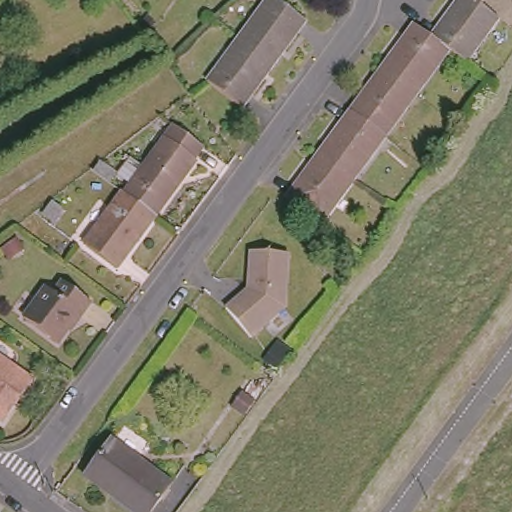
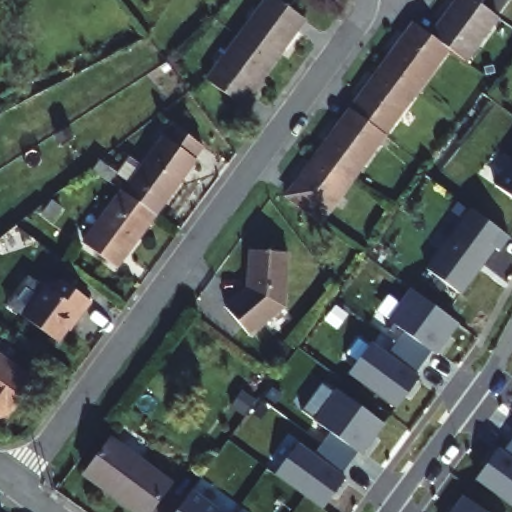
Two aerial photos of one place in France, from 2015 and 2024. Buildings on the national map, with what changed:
unchanged [(265,0),(276,0),(303,19),(272,62),(237,38),(265,0)]
unchanged [(497,15),(464,59),(448,47),(430,34),(454,0),(477,0),(477,1),(497,15)]
unchanged [(477,1),(477,0),(478,0),(477,1)]
unchanged [(413,22),(430,34),(448,47),(417,90),(382,64),(413,22)]
unchanged [(240,106),(206,81),(237,38),(272,62),(240,106)]
unchanged [(382,64),(417,90),(385,134),(350,108),(382,64)]
unchanged [(350,108),(385,134),(352,178),(318,153),(350,108)]
unchanged [(125,189),(165,133),(167,135),(176,122),(206,142),(195,155),(197,156),(157,211),(125,189)]
unchanged [(320,222),(286,196),(318,153),(352,178),(320,222)]
new [(497,183),(512,161),(512,194),(497,183)]
unchanged [(117,264),(85,240),(124,188),(125,189),(157,211),(117,264)]
new [(463,292),(429,265),(469,207),(509,235),(501,249),(497,247),(463,292)]
unchanged [(286,309),(252,339),(227,310),(251,289),(252,282),(249,282),(251,254),(289,256),(286,309)]
unchanged [(57,293),(66,281),(94,302),(85,315),(81,312),(59,342),(26,318),(49,287),(57,293)]
new [(459,324),(437,355),(434,352),(425,364),(399,344),(407,333),(392,321),(414,290),(459,324)]
new [(425,364),(417,375),(420,377),(397,408),(352,375),(375,344),(391,356),(399,344),(425,364)]
unchanged [(11,415),(7,414),(1,423),(0,422),(0,357),(35,383),(11,415)]
new [(385,424),(363,455),(360,452),(351,465),(325,445),(334,433),(317,422),(340,391),(385,424)]
unchanged [(112,440),(173,484),(153,512),(138,512),(116,497),(87,476),(90,470),(112,440)]
new [(479,481),(502,450),(505,453),(512,442),(512,505),(479,481)]
new [(351,465),(343,475),(346,477),(322,509),(277,475),(300,444),(316,456),(325,445),(351,465)]
new [(220,512),(179,512),(193,492),(220,512)]
new [(456,512),(467,497),(487,512),(456,512)]

